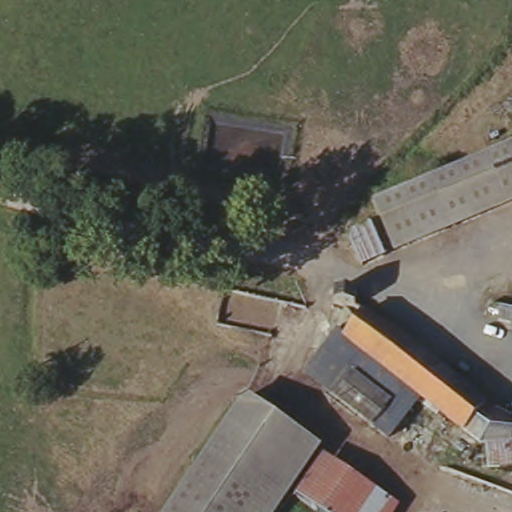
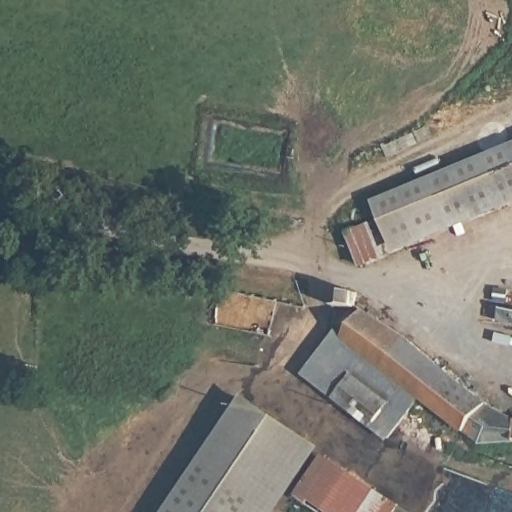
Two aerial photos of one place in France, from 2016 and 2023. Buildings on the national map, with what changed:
unchanged [(512,150),(512,195),(396,240),(382,201),(512,150)]
unchanged [(352,229),(377,219),(392,256),(368,266),(352,229)]
unchanged [(364,287),(362,303),(341,302),(342,285),(364,287)]
unchanged [(512,326),(497,322),(501,300),(512,302),(512,303),(512,326)]
unchanged [(512,418),(512,468),(483,472),(450,452),(466,435),(428,408),(395,445),(367,423),(387,401),(354,374),(333,395),(302,372),(338,327),(346,331),(366,312),(490,403),(512,418)]
unchanged [(251,392),(327,443),(280,512),(169,512),(251,392)]
unchanged [(404,496),(394,512),(330,512),(303,497),(327,453),(404,496)]

